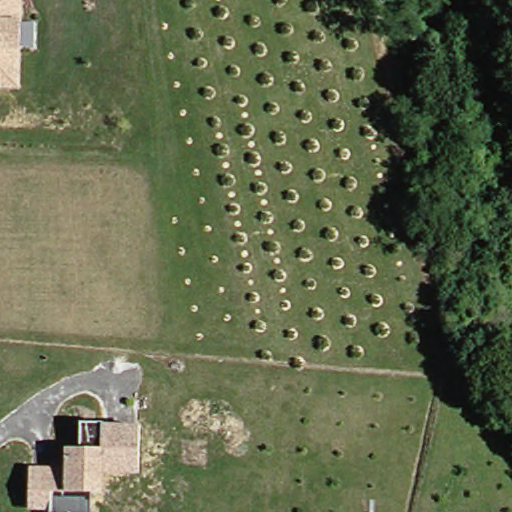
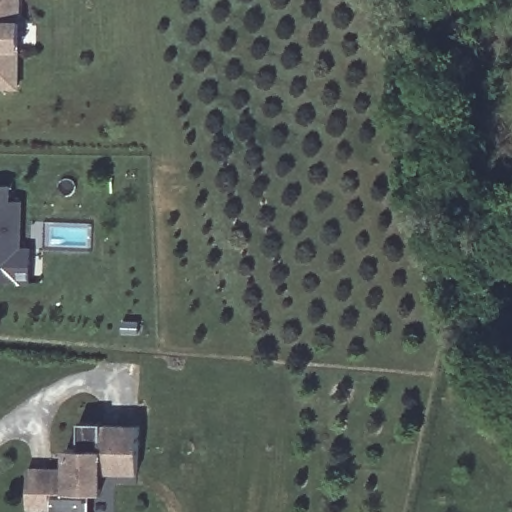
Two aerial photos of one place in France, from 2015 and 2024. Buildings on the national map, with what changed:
unchanged [(20,94),(0,93),(0,0),(23,0),(20,94)]
new [(0,282),(0,185),(13,185),(12,201),(25,201),(22,247),(34,248),(32,283),(0,282)]
unchanged [(70,451),(82,451),(82,426),(107,426),(107,431),(142,432),(141,469),(69,464),(70,451)]
unchanged [(141,476),(105,475),(102,494),(94,495),(93,512),(51,512),(51,511),(31,509),(32,471),(68,472),(69,464),(141,469),(141,476)]

